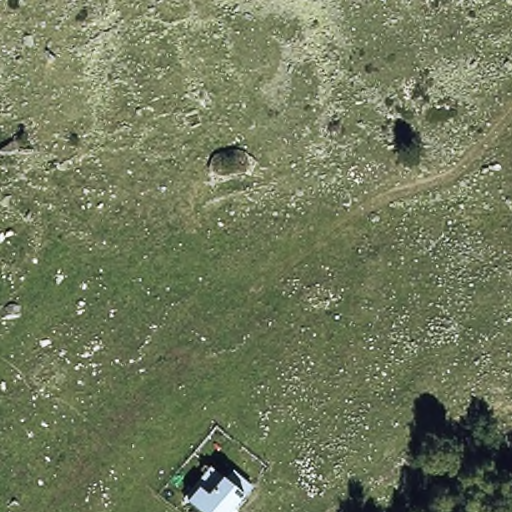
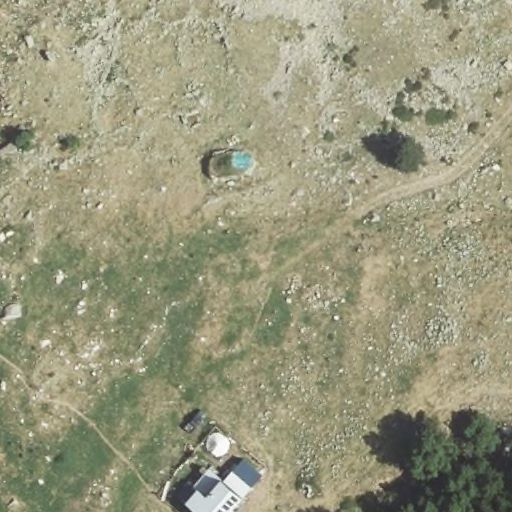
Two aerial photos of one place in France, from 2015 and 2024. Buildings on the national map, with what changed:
unchanged [(195,492),(206,502),(222,482),(242,500),(231,512),(188,512),(183,508),(195,492)]

